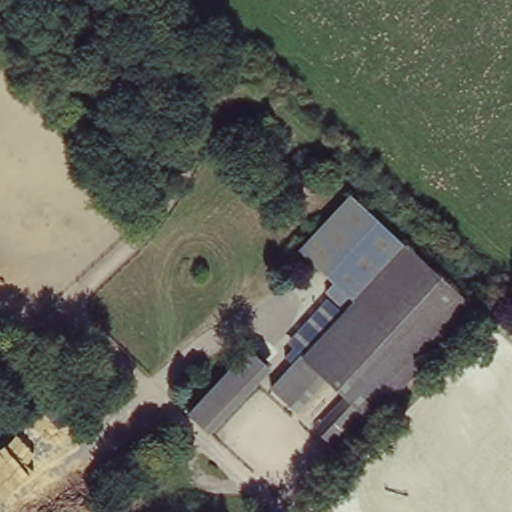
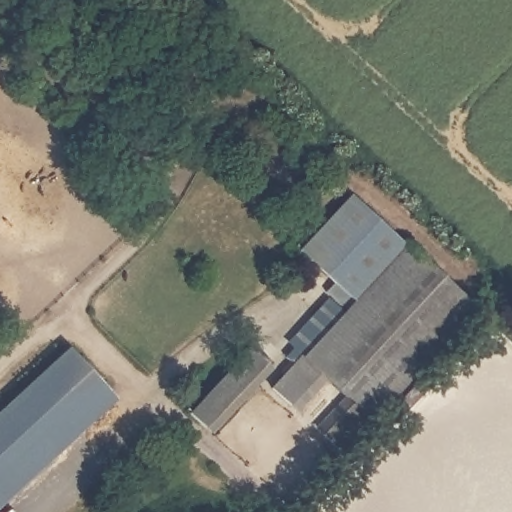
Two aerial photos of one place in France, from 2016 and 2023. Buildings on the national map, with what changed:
unchanged [(335,386),(314,411),(305,402),(287,386),(312,359),(301,349),(342,304),(353,314),(356,310),(338,293),(347,283),(310,247),(357,199),(397,237),(480,311),(353,447),(336,431),(329,425),(350,400),(335,386)]
unchanged [(210,430),(206,425),(197,417),(186,407),(249,341),(262,355),(267,359),(271,363),(210,430)]
new [(116,395),(0,504),(0,412),(70,348),(116,395)]

